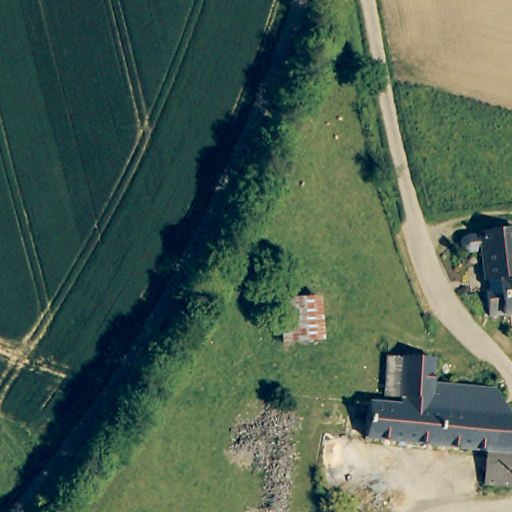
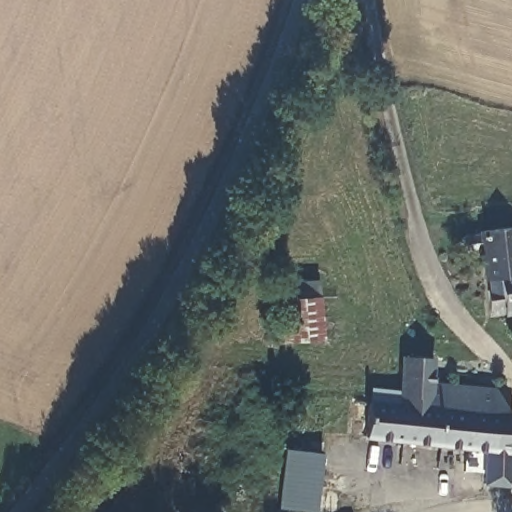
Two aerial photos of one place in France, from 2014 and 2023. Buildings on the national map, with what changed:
unchanged [(490,281),(486,281),(483,253),(472,254),(467,249),(467,243),(470,236),(483,235),(487,233),(512,231),(512,316),(492,318),(490,281)]
unchanged [(321,302),(321,344),(282,344),(283,302),(321,302)]
unchanged [(430,389),(493,394),(506,423),(512,423),(512,440),(512,458),(485,455),(351,445),(352,429),(353,404),(400,406),(400,402),(402,363),(431,364),(430,389)]
new [(316,512),(303,512),(279,509),(286,450),(323,455),(316,512)]

